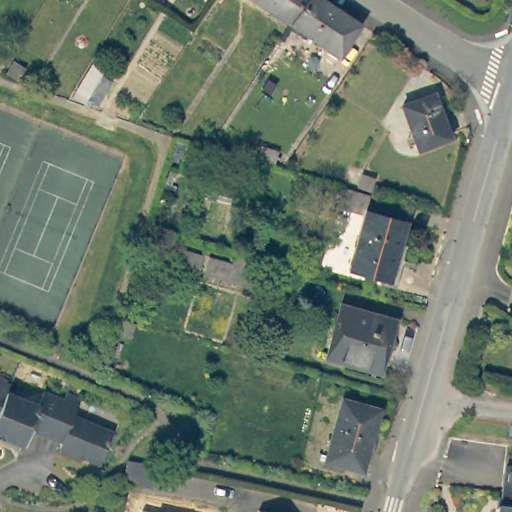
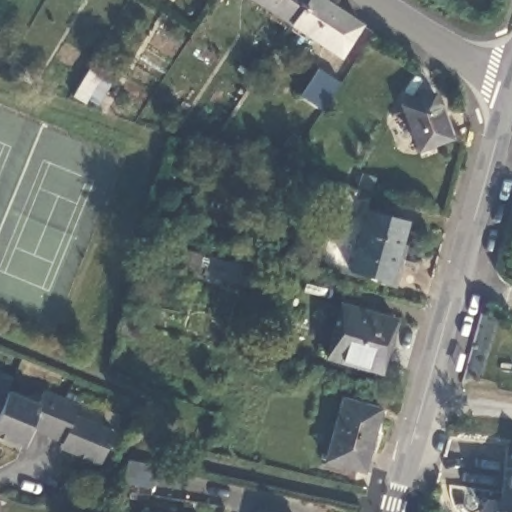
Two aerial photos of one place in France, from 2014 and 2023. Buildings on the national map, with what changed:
unchanged [(252,0),(299,0),(284,22),(252,0)]
unchanged [(335,57),(284,22),(299,0),(317,0),(356,26),(335,57)]
unchanged [(25,66),(17,77),(7,70),(13,59),(25,66)]
unchanged [(97,74),(80,101),(69,94),(85,67),(97,74)]
unchanged [(446,139),(414,150),(398,104),(430,93),(446,139)]
unchanged [(366,192),(361,204),(339,198),(343,185),(366,192)]
unchanged [(357,225),(331,217),(335,201),(362,208),(357,225)]
unchanged [(381,297),(338,284),(357,225),(398,238),(381,297)]
unchanged [(250,270),(242,295),(218,288),(194,282),(200,264),(224,271),(225,263),(250,270)]
unchanged [(392,321),(387,342),(385,341),(376,368),(350,359),(347,362),(326,355),(340,304),(392,321)]
unchanged [(139,324),(134,340),(120,336),(120,335),(125,320),(139,324)]
unchanged [(4,389),(0,398),(0,379),(7,381),(4,389)]
unchanged [(0,436),(0,398),(4,389),(35,402),(40,389),(75,404),(71,415),(110,432),(95,464),(55,447),(58,440),(30,428),(21,446),(17,444),(0,436)]
unchanged [(376,408),(358,470),(320,458),(337,397),(376,408)]
unchanged [(512,470),(512,512),(496,512),(496,509),(500,510),(500,504),(505,470),(512,470)]
unchanged [(144,512),(141,512),(141,511),(144,512)]

